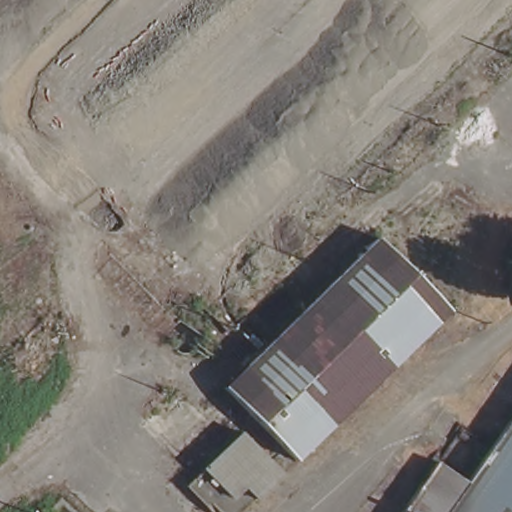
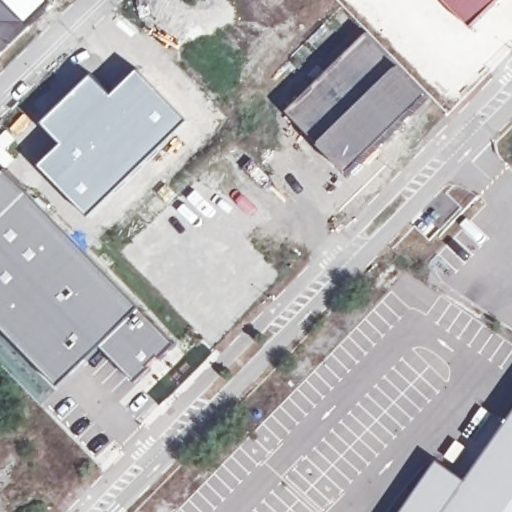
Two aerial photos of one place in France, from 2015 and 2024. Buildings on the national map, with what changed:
new [(16,36),(7,30),(7,29),(0,35),(0,34),(0,0),(2,0),(26,26),(16,36)]
new [(26,26),(2,0),(49,0),(50,2),(26,26)]
new [(370,34),(401,65),(319,145),(287,113),(370,34)]
new [(401,65),(430,95),(348,175),(319,145),(401,65)]
new [(61,144),(42,124),(92,75),(112,95),(139,69),(189,120),(88,219),(39,166),(61,144)]
new [(7,130),(22,113),(32,122),(7,150),(15,159),(7,169),(0,163),(0,134),(6,128),(7,130)]
new [(29,192),(0,220),(0,178),(7,171),(29,192)]
new [(177,345),(162,360),(159,358),(150,366),(152,370),(137,384),(101,347),(59,388),(0,327),(0,220),(29,192),(177,345)]
demolished [(170,264),(142,291),(177,332),(162,342),(103,275),(114,260),(143,235),(170,264)]
demolished [(223,385),(377,235),(450,311),(297,460),(223,385)]
unchanged [(437,460),(467,481),(512,417),(512,512),(401,512),(437,460)]
demolished [(242,512),(218,512),(190,481),(242,430),(282,472),(242,512)]

